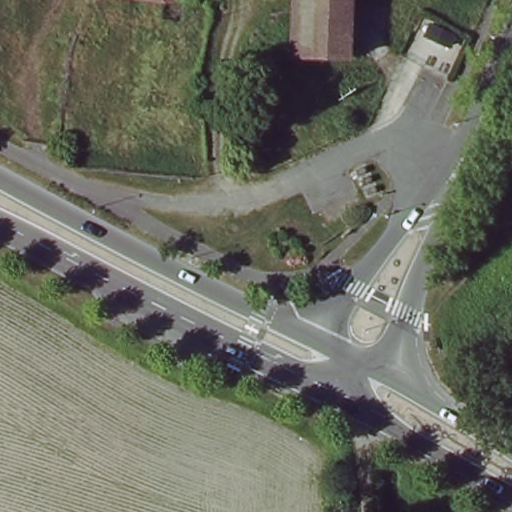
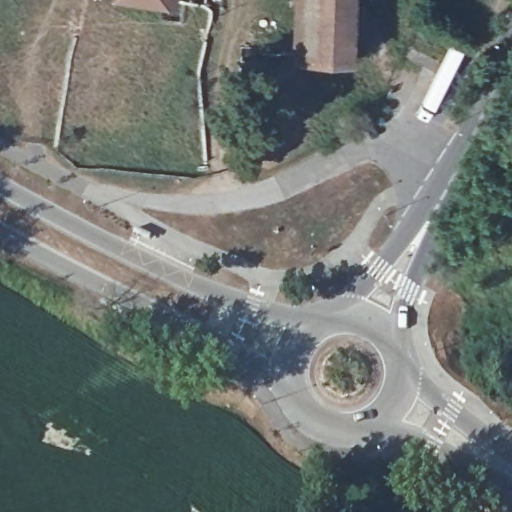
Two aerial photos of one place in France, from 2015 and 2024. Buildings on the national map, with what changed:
unchanged [(335,32),(334,57),(288,55),(290,0),(336,0),(335,32)]
unchanged [(372,34),(335,32),(336,0),(374,0),(372,34)]

